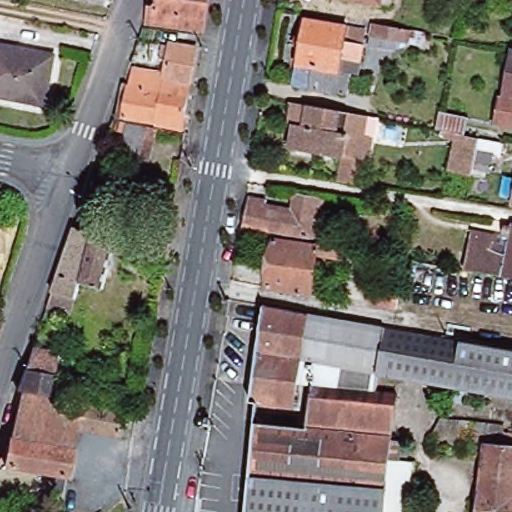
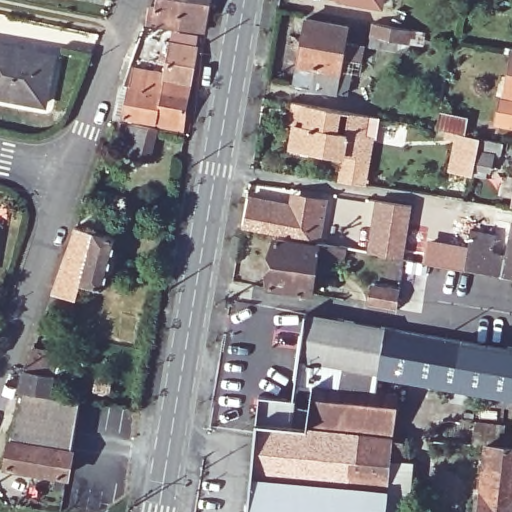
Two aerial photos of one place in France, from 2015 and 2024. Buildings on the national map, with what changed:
unchanged [(144,19),(148,6),(155,6),(156,0),(207,0),(202,29),(144,19)]
unchanged [(381,3),(362,0),(381,0),(381,3)]
unchanged [(339,50),(357,53),(356,69),(336,66),(333,82),(345,84),(342,103),(288,93),(300,29),(342,36),(339,50)]
unchanged [(393,35),(390,58),(365,54),(368,31),(393,35)]
unchanged [(0,94),(0,42),(52,52),(42,101),(0,94)]
unchanged [(121,118),(127,88),(130,88),(132,71),(163,77),(169,44),(194,49),(180,131),(121,118)]
unchanged [(512,130),(496,127),(508,51),(512,52),(512,130)]
unchanged [(342,159),(290,151),(298,107),(360,117),(365,118),(362,137),(366,138),(372,140),(364,187),(338,183),(342,159)]
unchanged [(472,178),(449,173),(456,136),(436,132),(440,111),(471,117),(467,138),(478,140),(472,178)]
unchanged [(123,124),(121,133),(114,130),(116,123),(123,124)]
unchanged [(149,163),(120,158),(126,125),(155,131),(149,163)]
unchanged [(314,239),(307,237),(243,223),(249,196),(266,199),(265,207),(295,213),(298,193),(315,197),(322,198),(314,239)]
new [(372,199),(412,205),(403,260),(364,254),(372,199)]
unchanged [(78,219),(117,234),(100,283),(84,278),(79,293),(56,285),(78,219)]
unchanged [(472,245),(491,248),(490,253),(506,255),(511,223),(512,223),(512,277),(468,269),(472,245)]
unchanged [(316,245),(317,241),(341,246),(347,247),(345,259),(339,257),(315,255),(308,295),(267,287),(275,238),(316,245)]
unchanged [(372,288),(399,292),(397,310),(369,305),(372,288)]
unchanged [(385,331),(377,376),(317,365),(300,363),(258,355),(265,312),(343,326),(343,324),(385,331)]
unchanged [(512,353),(512,399),(377,376),(385,331),(393,332),(512,353)]
unchanged [(300,363),(292,411),(251,404),(258,355),(300,363)]
unchanged [(25,364),(52,371),(47,393),(17,387),(25,364)]
unchanged [(307,430),(313,388),(374,395),(396,398),(392,438),(408,440),(407,449),(402,449),(401,464),(390,463),(385,512),(248,512),(256,425),(307,430)]
unchanged [(120,435),(75,426),(69,450),(71,450),(66,475),(3,463),(8,438),(11,439),(21,392),(122,411),(120,435)]
unchanged [(512,449),(512,512),(480,512),(487,447),(512,449)]

